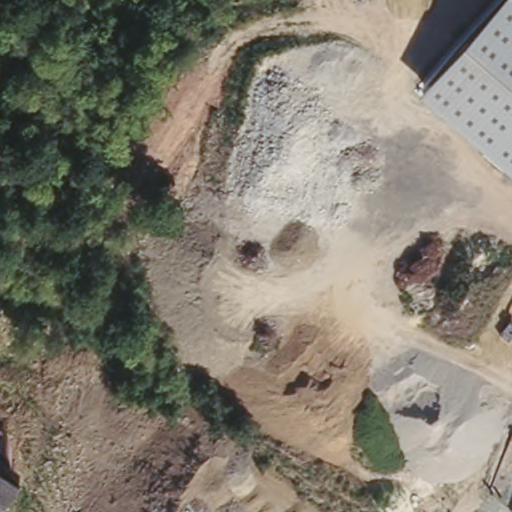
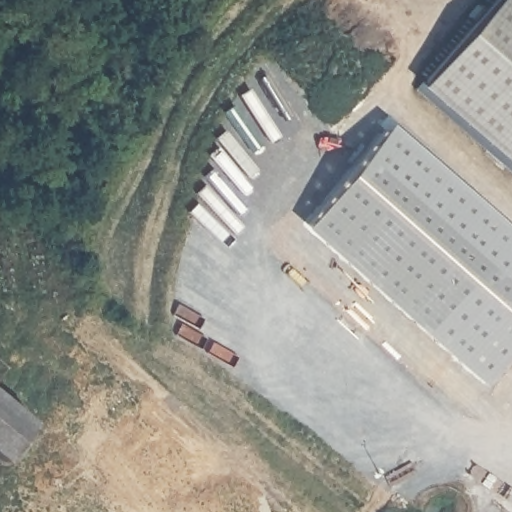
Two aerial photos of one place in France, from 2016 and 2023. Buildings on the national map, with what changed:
unchanged [(418,90),(495,0),(512,0),(512,169),(418,90)]
new [(512,233),(512,347),(480,385),(301,229),(388,125),(512,233)]
unchanged [(0,386),(0,368),(9,375),(0,386)]
demolished [(0,459),(0,418),(20,433),(0,459)]

